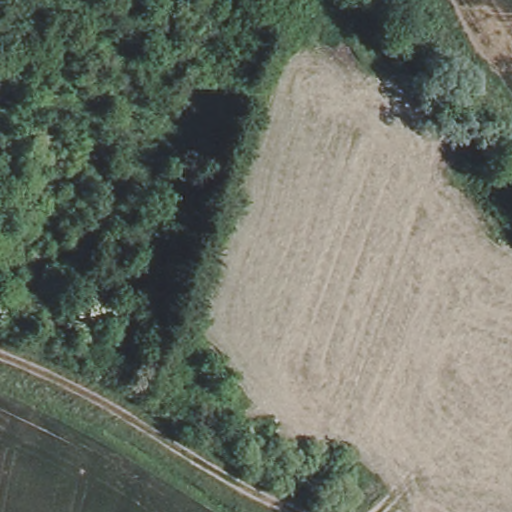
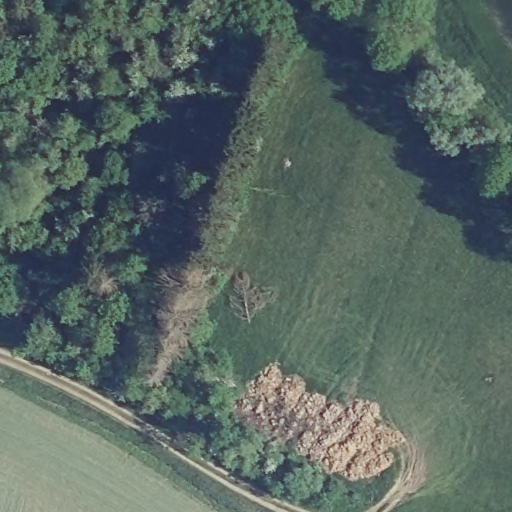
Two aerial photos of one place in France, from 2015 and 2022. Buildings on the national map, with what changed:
unchanged [(37,333),(0,320),(0,299),(45,315),(37,333)]
unchanged [(127,341),(121,364),(80,348),(86,324),(127,341)]

